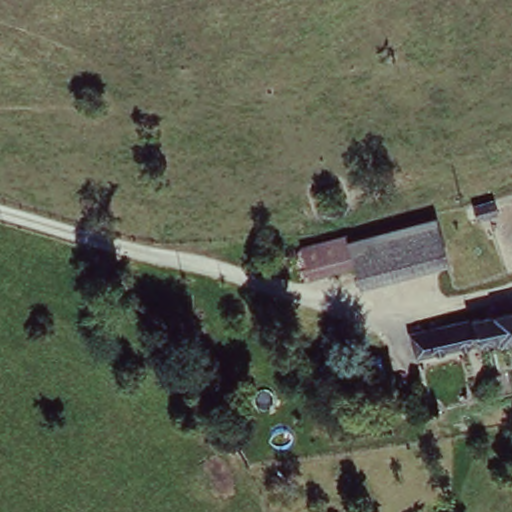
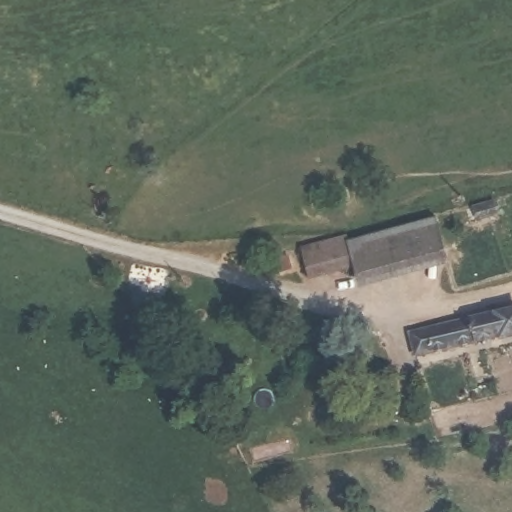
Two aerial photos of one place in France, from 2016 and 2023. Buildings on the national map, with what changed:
unchanged [(502,209),(484,215),(480,202),(499,197),(502,209)]
unchanged [(344,243),(432,219),(439,248),(351,272),(349,265),(344,243)]
unchanged [(307,276),(299,247),(341,236),(344,243),(349,265),(307,276)]
unchanged [(506,340),(502,335),(415,357),(409,337),(512,311),(512,338),(506,340)]

